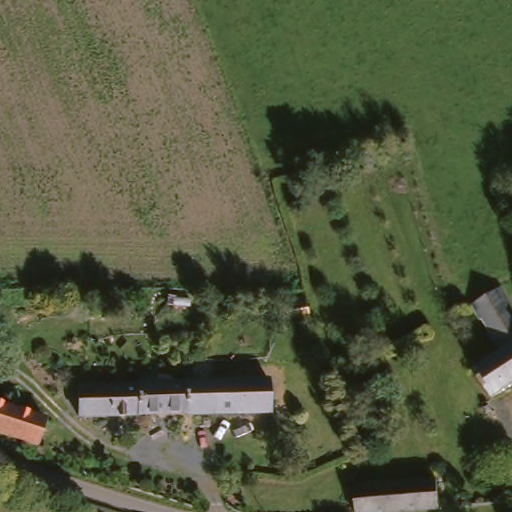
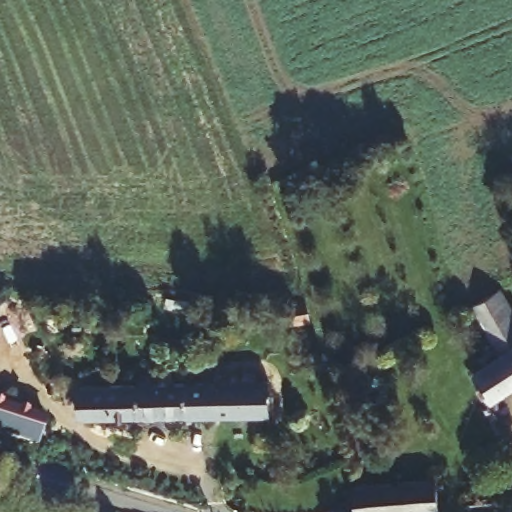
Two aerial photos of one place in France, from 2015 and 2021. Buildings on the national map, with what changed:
unchanged [(504,398),(486,369),(511,353),(477,305),(480,303),(505,288),(512,298),(512,393),(504,398)]
unchanged [(275,373),(276,410),(145,415),(141,381),(195,378),(275,373)]
unchanged [(145,415),(88,417),(85,385),(141,381),(145,415)]
unchanged [(44,444),(0,428),(0,398),(54,417),(44,444)]
unchanged [(440,477),(442,506),(359,511),(357,481),(440,477)]

